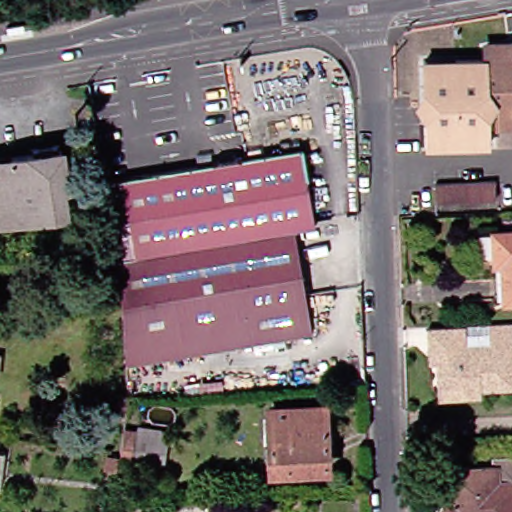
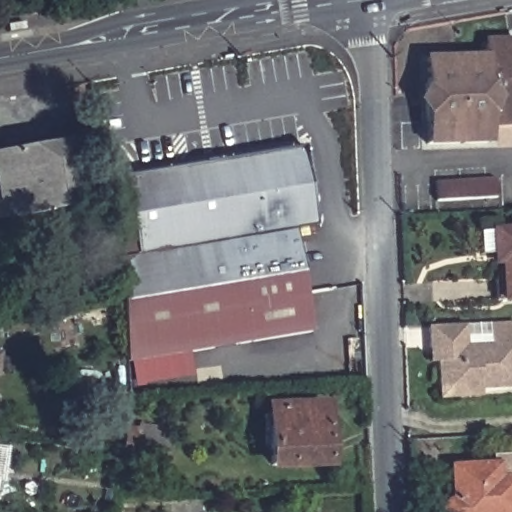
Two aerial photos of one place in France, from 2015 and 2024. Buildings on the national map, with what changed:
unchanged [(423,62),(484,60),(483,48),(506,44),(512,43),(512,128),(486,128),(487,145),(426,148),(423,62)]
unchanged [(85,209),(0,221),(0,175),(12,173),(10,159),(52,153),(52,149),(76,145),(76,150),(81,149),(88,194),(83,196),(85,209)]
unchanged [(305,146),(317,224),(296,227),(137,250),(126,174),(305,146)]
unchanged [(126,174),(137,250),(296,227),(313,330),(136,358),(130,359),(125,298),(112,205),(107,177),(126,174)]
unchanged [(434,201),(434,184),(467,182),(468,199),(434,201)]
unchanged [(506,303),(504,258),(488,259),(487,237),(512,236),(512,303),(506,303)]
unchanged [(445,363),(437,363),(437,350),(435,328),(468,326),(493,324),(512,324),(512,389),(487,390),(488,397),(448,399),(447,387),(445,363)]
unchanged [(0,377),(0,356),(3,356),(0,377)]
unchanged [(281,467),(278,411),(334,410),(336,465),(281,467)]
unchanged [(119,454),(122,429),(135,431),(131,464),(118,461),(119,454)]
unchanged [(435,510),(437,507),(439,505),(442,503),(445,502),(445,480),(444,467),(490,466),(490,459),(512,458),(512,512),(434,512),(435,510)]

